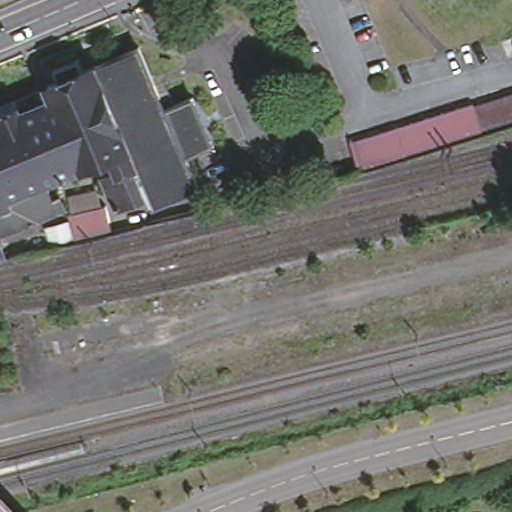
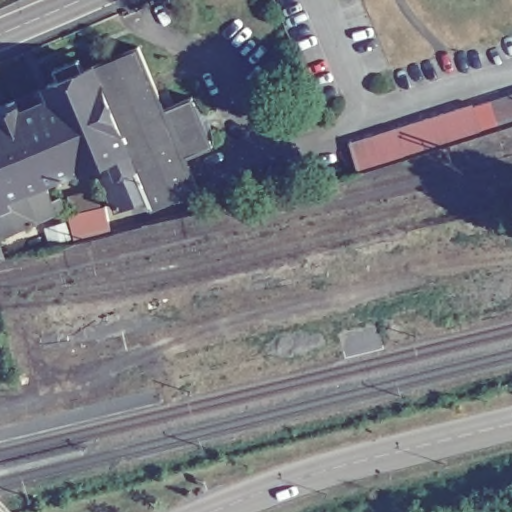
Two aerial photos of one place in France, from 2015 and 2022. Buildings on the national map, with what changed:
unchanged [(0,114),(0,113),(0,100),(58,77),(53,65),(76,55),(81,66),(138,43),(163,106),(190,95),(209,142),(183,153),(195,184),(133,209),(128,199),(111,205),(100,175),(113,169),(108,154),(78,166),(77,164),(41,178),(48,196),(53,194),(58,208),(0,232),(0,115),(0,114)]
unchanged [(426,116),(442,111),(457,106),(459,106),(473,101),(474,104),(489,99),(504,95),(512,92),(512,121),(497,126),(483,130),(467,135),(451,139),(436,143),(424,147),(421,148),(405,154),(394,158),(389,159),(374,163),(358,167),(349,140),(365,135),(381,130),(396,125),(411,121),(426,116)]
unchanged [(61,191),(91,184),(95,201),(99,200),(105,226),(77,233),(68,235),(62,209),(65,208),(61,191)]

